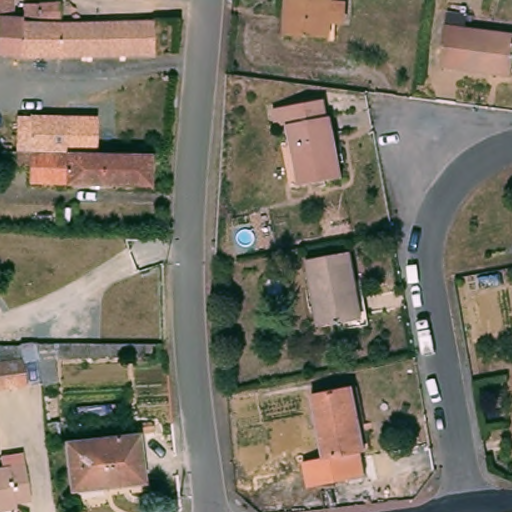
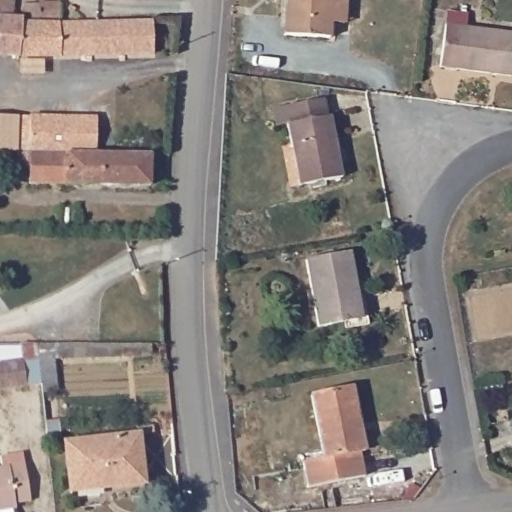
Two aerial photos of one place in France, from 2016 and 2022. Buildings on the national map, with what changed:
unchanged [(0,21),(0,0),(14,0),(15,4),(60,4),(59,20),(23,19),(23,23),(0,21)]
unchanged [(323,26),(321,43),(278,37),(282,0),(326,0),(326,3),(339,4),(337,27),(323,26)]
unchanged [(66,25),(154,23),(154,55),(64,55),(19,56),(0,55),(0,21),(23,23),(66,25)]
unchanged [(512,33),(512,53),(509,74),(439,65),(445,24),(512,33)]
unchanged [(287,123),(291,122),(288,105),(325,99),(328,116),(330,115),(340,177),(297,183),(287,123)]
unchanged [(24,118),(76,119),(75,154),(23,153),(24,118)]
unchanged [(155,186),(86,185),(22,184),(23,153),(75,154),(123,154),(138,155),(154,155),(155,186)]
unchanged [(355,321),(317,327),(305,259),(351,252),(357,285),(363,319),(355,321)]
unchanged [(24,361),(26,386),(0,388),(0,363),(24,361)]
unchanged [(312,391),(352,384),(364,448),(323,455),(312,391)]
unchanged [(68,441),(141,434),(145,481),(73,490),(68,441)]
unchanged [(29,463),(37,499),(21,503),(22,508),(2,512),(0,512),(0,469),(29,463)]

